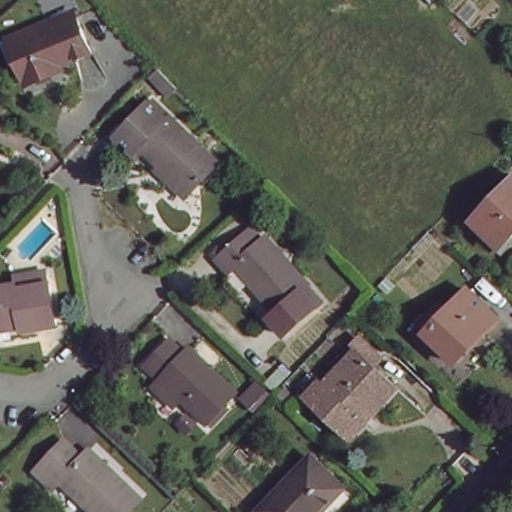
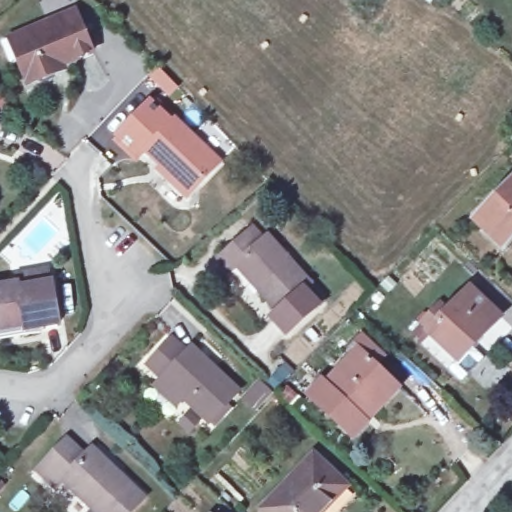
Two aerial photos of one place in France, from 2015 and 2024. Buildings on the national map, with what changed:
unchanged [(3,39),(11,35),(48,21),(51,26),(78,15),(91,50),(65,61),(66,65),(29,80),(20,59),(12,63),(3,39)]
unchanged [(181,90),(173,98),(156,81),(165,72),(181,90)]
unchanged [(176,128),(226,172),(201,201),(180,183),(176,186),(147,159),(142,164),(125,148),(136,136),(122,122),(146,96),(161,110),(156,114),(173,130),(176,128)]
unchanged [(503,248),(475,222),(512,183),(512,239),(503,248)]
unchanged [(275,254),(279,251),(296,273),(299,271),(321,298),(286,324),(247,275),(240,282),(228,268),(264,240),(275,254)]
unchanged [(57,284),(64,324),(31,329),(31,333),(0,338),(0,287),(24,283),(25,288),(57,284)]
unchanged [(505,319),(463,364),(433,336),(435,334),(425,325),(444,305),(454,313),(475,291),(505,319)]
unchanged [(179,353),(185,346),(232,392),(203,422),(183,402),(182,403),(179,400),(172,407),(156,390),(161,383),(142,364),(166,338),(179,353)]
unchanged [(365,424),(366,426),(353,441),(308,399),(323,382),(328,387),(359,354),(355,350),(361,343),(384,363),(376,370),(387,381),(396,389),(365,424)]
unchanged [(93,451),(120,478),(122,476),(146,498),(133,512),(99,512),(66,479),(58,487),(41,470),(68,442),(85,458),(93,451)]
unchanged [(325,512),(264,512),(313,460),(345,491),(325,512)]

